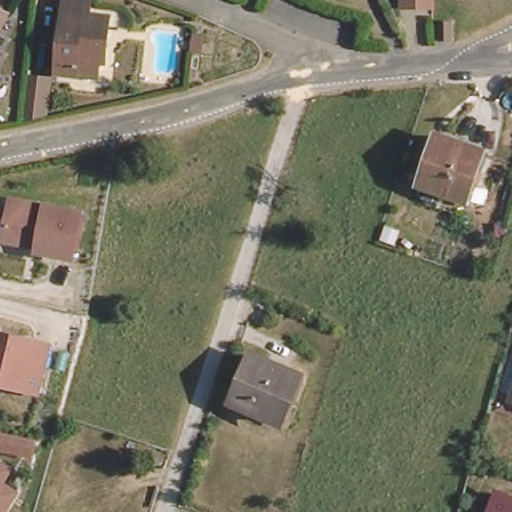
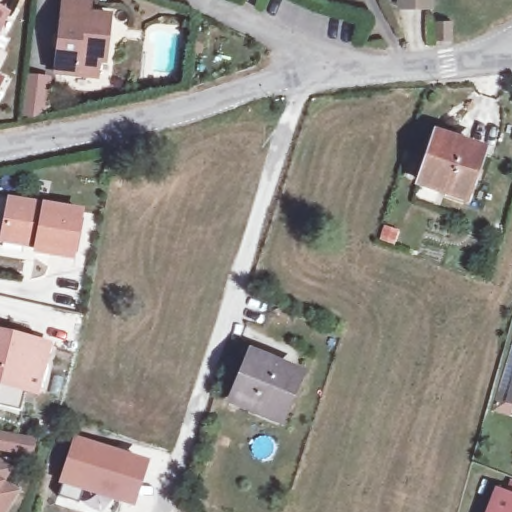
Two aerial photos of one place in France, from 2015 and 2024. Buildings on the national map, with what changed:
unchanged [(68,0),(73,0),(92,2),(90,16),(108,18),(115,19),(111,62),(103,62),(102,72),(102,77),(77,76),(60,74),(67,13),(68,0)]
unchanged [(324,0),(325,1),(322,10),(312,7),(313,0),(324,0)]
unchanged [(402,5),(401,0),(432,0),(432,5),(402,5)]
unchanged [(6,7),(0,17),(0,3),(6,7)]
unchanged [(450,20),(450,39),(434,39),(434,21),(450,20)]
unchanged [(190,33),(199,34),(197,52),(188,51),(190,33)]
unchanged [(27,74),(50,76),(48,111),(23,116),(27,74)]
unchanged [(440,138),(485,153),(470,201),(425,186),(440,138)]
unchanged [(70,252),(33,247),(34,242),(0,236),(0,233),(7,196),(78,207),(70,252)]
unchanged [(40,393),(0,383),(0,333),(50,345),(40,393)]
unchanged [(235,401),(255,356),(304,378),(295,401),(283,423),(274,419),(235,401)]
new [(73,436),(150,461),(134,508),(82,492),(79,502),(58,496),(62,485),(58,483),(73,436)]
unchanged [(0,461),(7,465),(0,476),(0,461)]
unchanged [(0,479),(13,487),(0,509),(0,479)]
unchanged [(492,497),(512,505),(512,512),(487,512),(492,497)]

